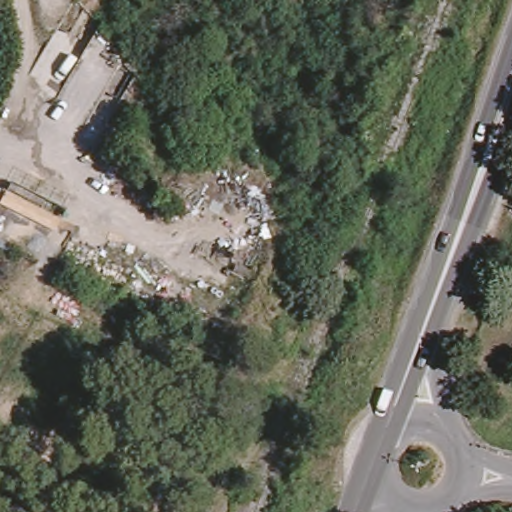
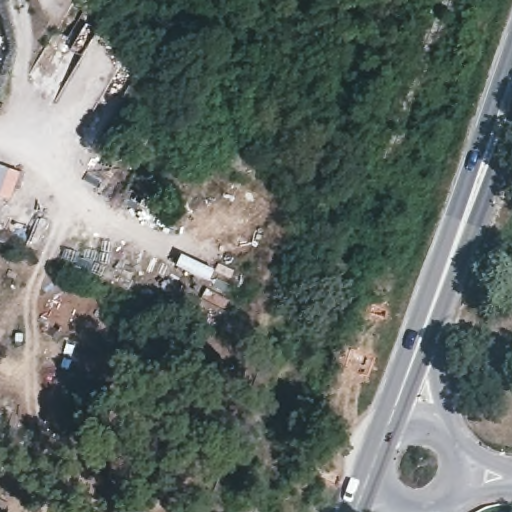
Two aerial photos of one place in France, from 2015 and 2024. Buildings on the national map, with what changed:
[]

